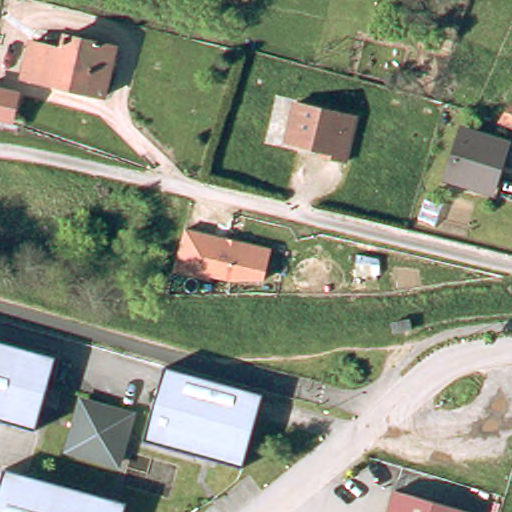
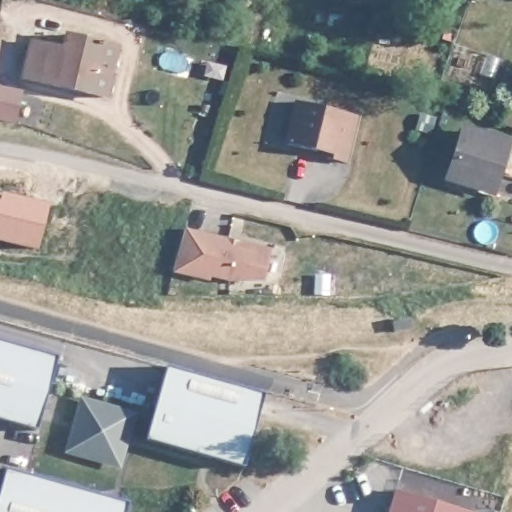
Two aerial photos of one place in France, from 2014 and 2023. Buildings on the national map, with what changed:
unchanged [(46,49),(47,43),(64,46),(65,39),(119,50),(110,99),(27,84),(34,47),(46,49)]
unchanged [(12,117),(10,127),(0,125),(0,96),(16,99),(15,109),(21,110),(20,119),(12,117)]
unchanged [(330,155),(332,151),(290,141),(300,98),(357,112),(347,159),(330,155)]
unchanged [(505,124),(512,111),(512,127),(505,124)]
unchanged [(463,140),(504,154),(489,199),(448,185),(463,140)]
new [(3,195),(47,204),(39,247),(0,239),(0,202),(2,202),(3,195)]
unchanged [(271,247),(263,288),(175,272),(184,232),(271,247)]
unchanged [(396,325),(412,322),(413,332),(397,335),(396,325)]
unchanged [(37,428),(0,417),(0,341),(60,358),(37,428)]
unchanged [(79,393),(149,408),(164,367),(263,390),(245,463),(142,437),(135,437),(127,466),(61,448),(79,393)]
unchanged [(124,512),(0,512),(0,485),(5,467),(127,501),(124,512)]
unchanged [(397,494),(456,512),(391,512),(397,494)]

